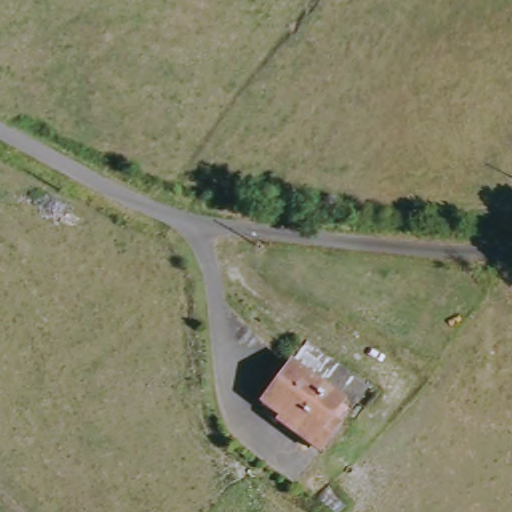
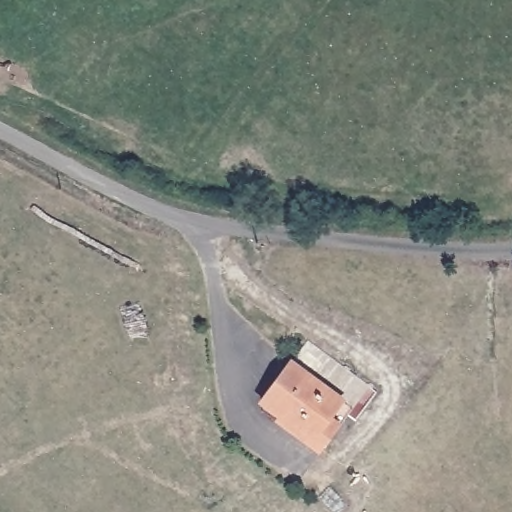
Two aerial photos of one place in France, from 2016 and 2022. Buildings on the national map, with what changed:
unchanged [(318,461),(256,414),(302,352),(364,399),(318,461)]

